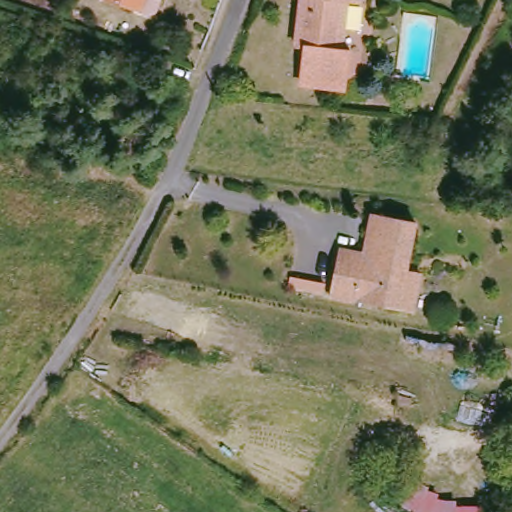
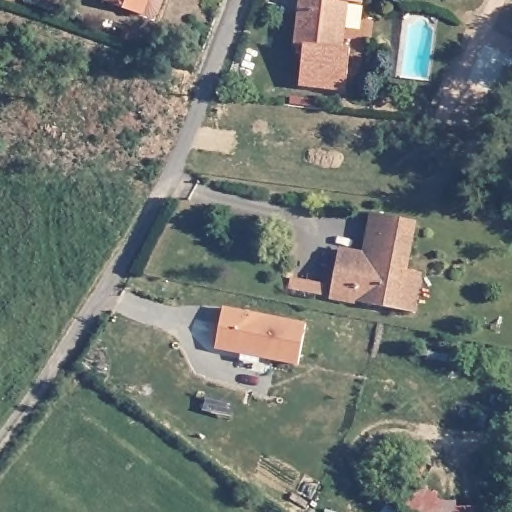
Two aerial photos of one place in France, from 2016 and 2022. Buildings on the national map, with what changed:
unchanged [(155,8),(149,11),(135,6),(119,0),(158,0),(155,8)]
unchanged [(362,4),(345,2),(340,49),(350,50),(345,89),(301,84),(305,48),(295,46),(301,0),(362,0),(362,4)]
unchanged [(398,315),(330,301),(336,271),(354,275),(357,258),(365,259),(372,219),(415,227),(398,315)]
new [(216,349),(224,308),(307,323),(298,366),(216,349)]
unchanged [(459,495),(460,503),(489,502),(490,512),(416,512),(398,505),(407,476),(443,494),(459,495)]

